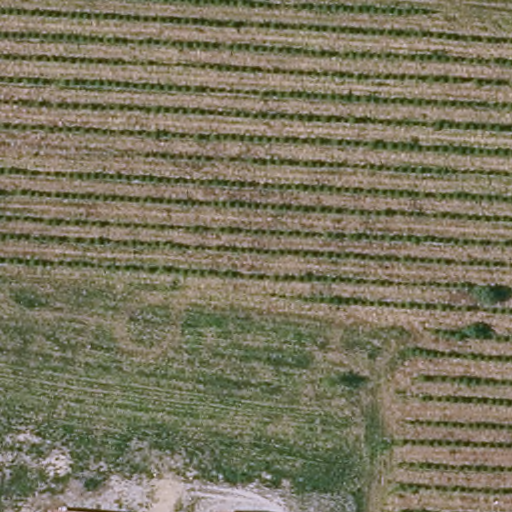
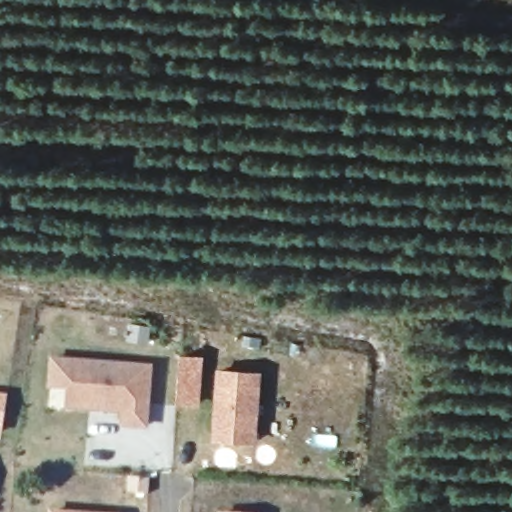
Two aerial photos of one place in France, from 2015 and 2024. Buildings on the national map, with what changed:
new [(65,388),(47,388),(48,355),(152,363),(147,428),(119,426),(119,413),(65,409),(65,388)]
new [(216,367),(260,370),(255,442),(211,440),(216,367)]
new [(0,393),(7,395),(1,435),(0,434),(0,393)]
unchanged [(48,512),(48,509),(82,512),(48,512)]

